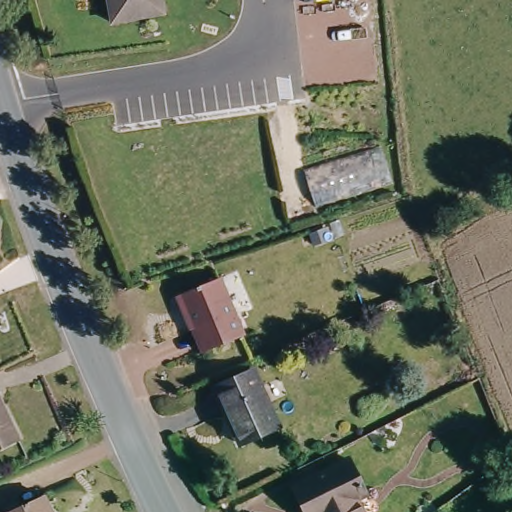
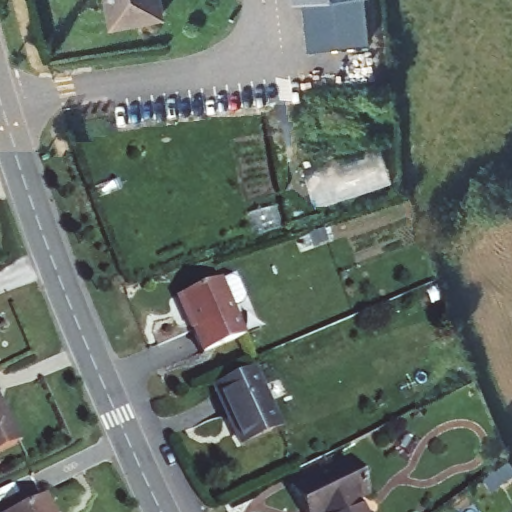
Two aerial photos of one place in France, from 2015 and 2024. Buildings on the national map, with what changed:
unchanged [(117,22),(112,0),(165,0),(167,13),(117,22)]
new [(309,48),(304,0),(368,0),(369,40),(309,48)]
unchanged [(233,276),(241,276),(248,293),(245,300),(233,306),(248,338),(208,355),(193,320),(191,321),(181,298),(223,280),(233,276)]
unchanged [(259,371),(284,425),(246,442),(221,388),(259,371)]
unchanged [(3,388),(0,389),(0,382),(3,388)]
unchanged [(19,435),(0,445),(0,389),(19,435)]
unchanged [(351,457),(367,493),(356,498),(363,512),(305,512),(293,485),(351,457)]
unchanged [(40,490),(50,512),(1,512),(0,510),(0,507),(40,490)]

